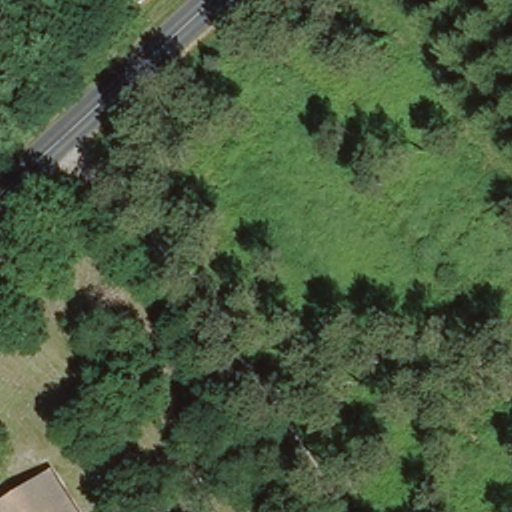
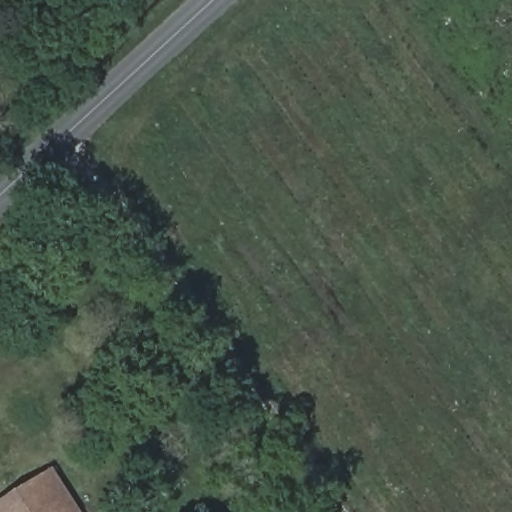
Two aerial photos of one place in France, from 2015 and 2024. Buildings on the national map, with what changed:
unchanged [(81,512),(0,512),(0,500),(54,466),(81,512)]

